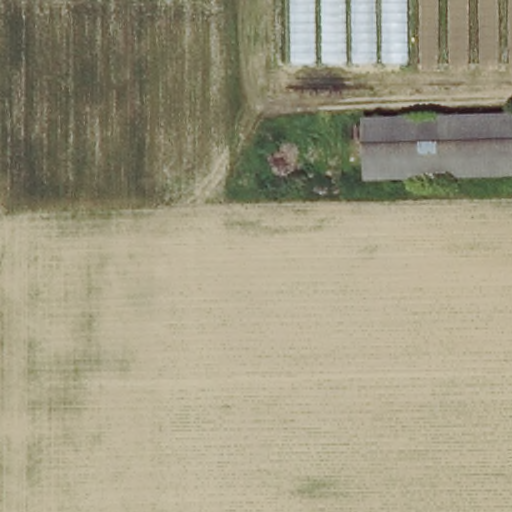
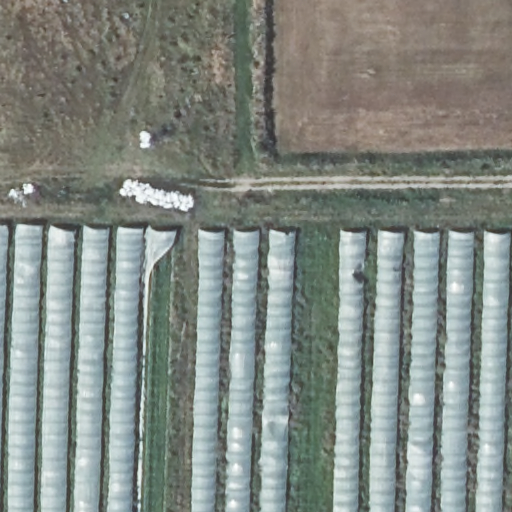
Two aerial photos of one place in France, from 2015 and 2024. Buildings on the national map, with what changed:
demolished [(512,117),(512,177),(358,179),(358,120),(512,117)]
new [(512,231),(512,512),(0,512),(0,224),(512,231)]

